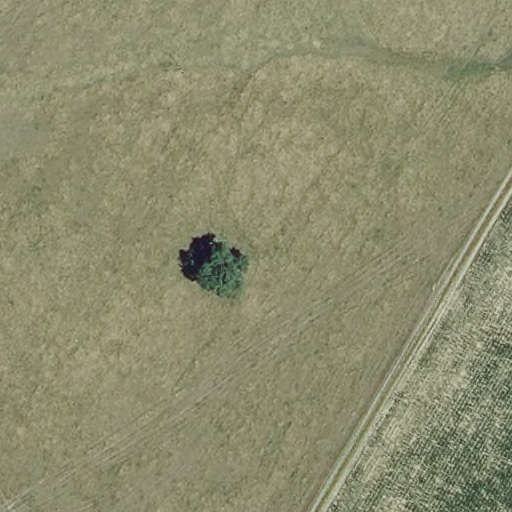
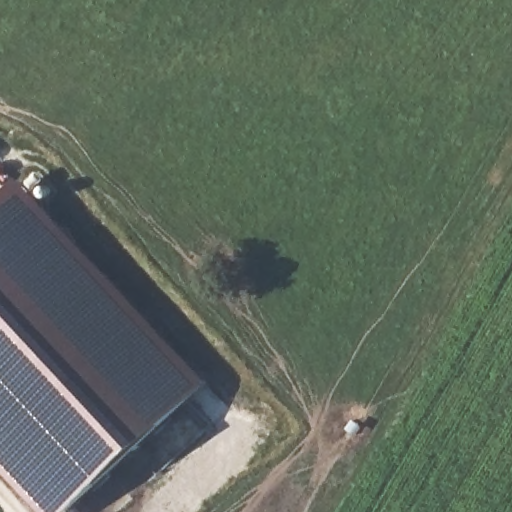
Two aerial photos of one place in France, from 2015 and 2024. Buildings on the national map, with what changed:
new [(202,380),(56,512),(40,512),(0,469),(0,181),(11,173),(202,380)]

